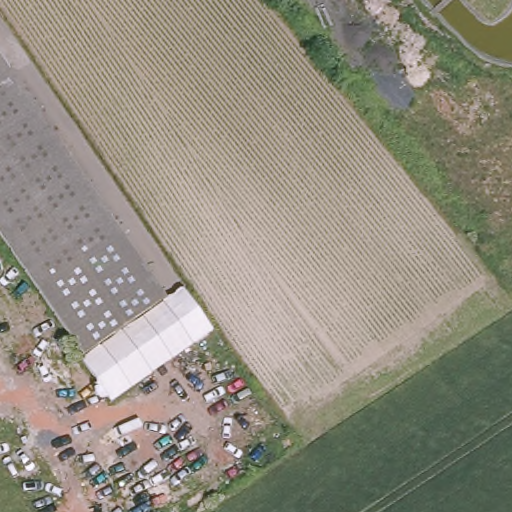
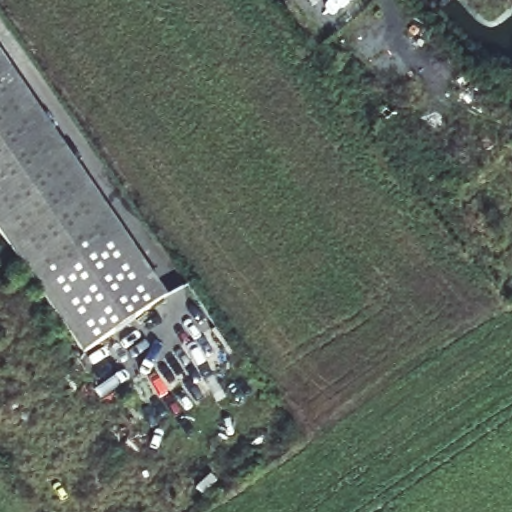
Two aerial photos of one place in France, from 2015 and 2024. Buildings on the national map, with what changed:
unchanged [(169,297),(85,355),(0,232),(0,53),(169,297)]
demolished [(80,360),(85,355),(169,297),(185,287),(213,331),(110,402),(80,360)]

